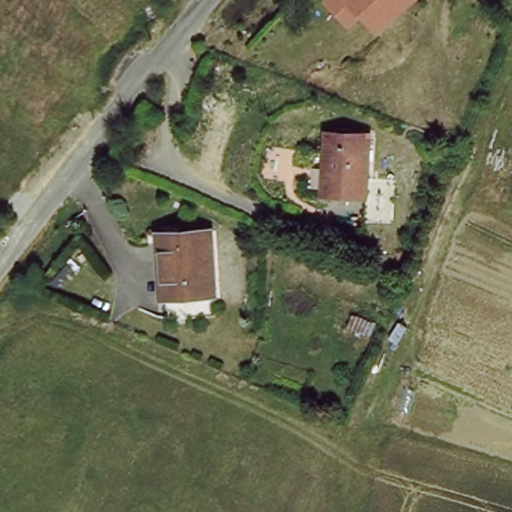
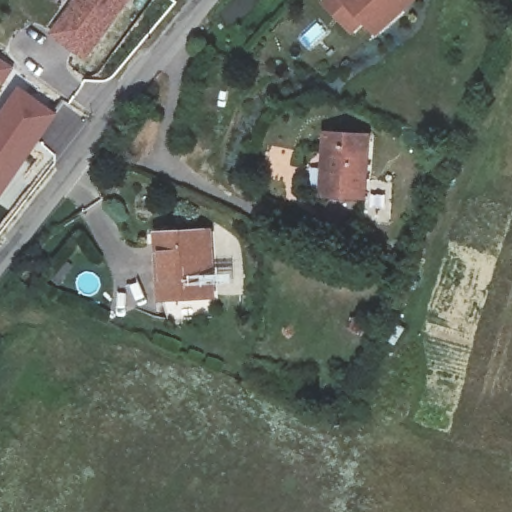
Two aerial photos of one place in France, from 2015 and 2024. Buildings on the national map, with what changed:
new [(75,0),(129,0),(85,61),(49,35),(75,0)]
new [(325,0),(416,0),(375,37),(364,25),(351,36),(322,3),(325,0)]
demolished [(347,0),(394,0),(369,24),(346,1),(347,0)]
new [(17,92),(56,118),(0,201),(0,117),(17,92)]
unchanged [(328,135),(370,139),(363,204),(322,200),(328,135)]
unchanged [(212,220),(209,310),(164,308),(165,241),(154,241),(156,219),(212,220)]

